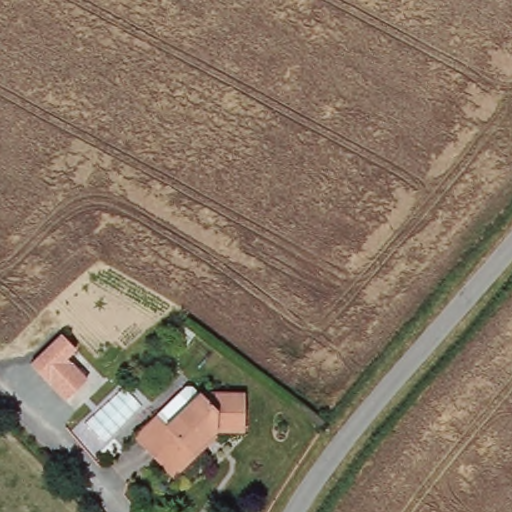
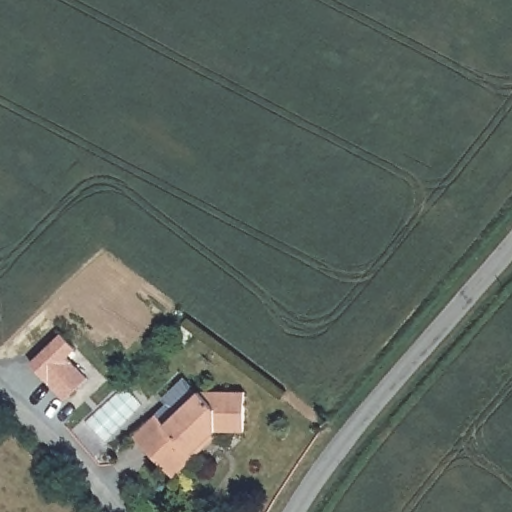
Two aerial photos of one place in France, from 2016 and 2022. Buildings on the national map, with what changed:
unchanged [(68,357),(87,378),(64,400),(28,363),(60,333),(76,349),(68,357)]
unchanged [(243,424),(215,433),(192,454),(195,456),(169,480),(130,437),(156,413),(185,387),(194,398),(231,386),(243,424)]

